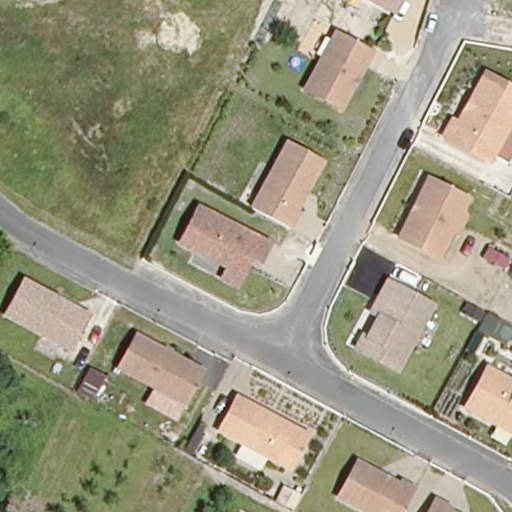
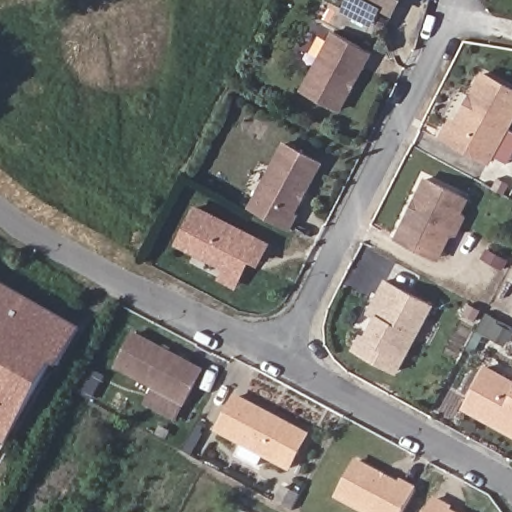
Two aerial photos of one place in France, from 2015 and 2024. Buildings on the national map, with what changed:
unchanged [(393,17),(360,0),(401,0),(393,17)]
unchanged [(374,53),(342,111),(305,90),(337,34),(374,53)]
unchanged [(487,161),(443,138),(450,124),(456,126),(481,77),(512,93),(512,114),(487,161)]
unchanged [(287,140),(322,161),(294,208),(297,210),(288,225),(258,209),(249,205),(287,140)]
unchanged [(436,256),(397,236),(409,211),(413,210),(416,203),(415,199),(425,177),(465,197),(459,209),(463,215),(454,233),(447,233),(436,256)]
unchanged [(220,280),(225,269),(176,245),(194,209),(266,244),(257,262),(248,258),(234,286),(220,280)]
demolished [(21,282),(88,316),(69,351),(2,315),(21,282)]
unchanged [(364,311),(372,295),(378,282),(432,309),(401,374),(354,351),(372,315),(364,311)]
new [(61,368),(55,365),(9,445),(0,440),(0,283),(83,331),(61,368)]
unchanged [(135,336),(204,372),(184,406),(116,370),(135,336)]
unchanged [(468,410),(490,371),(512,383),(512,435),(468,410)]
unchanged [(290,470),(227,436),(219,432),(236,398),(245,403),(308,436),(290,470)]
unchanged [(362,512),(335,497),(354,463),(397,486),(399,483),(414,491),(403,512),(362,512)]
unchanged [(286,493),(295,478),(309,486),(301,501),(286,493)]
unchanged [(432,512),(438,501),(452,509),(450,512),(432,512)]
unchanged [(234,512),(233,512),(234,511),(234,512)]

